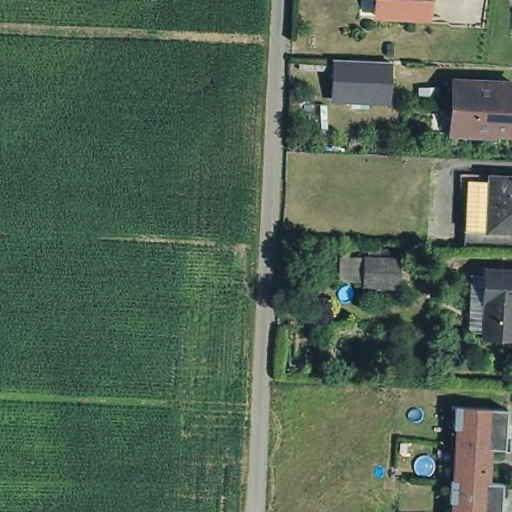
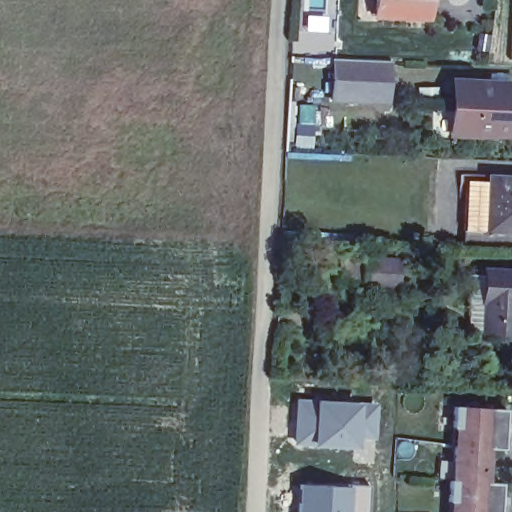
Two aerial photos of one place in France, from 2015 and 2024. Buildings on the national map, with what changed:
unchanged [(428,0),(427,20),(375,18),(375,0),(428,0)]
unchanged [(390,105),(331,102),(334,57),(391,60),(390,105)]
unchanged [(459,80),(512,87),(512,135),(512,138),(477,134),(477,136),(452,133),(459,80)]
unchanged [(491,177),(512,178),(512,234),(489,232),(490,184),(491,177)]
unchanged [(512,234),(512,249),(467,246),(471,182),(490,184),(489,232),(512,234)]
unchanged [(367,258),(400,259),(398,286),(366,284),(367,258)]
unchanged [(512,342),(482,340),(482,335),(467,335),(469,309),(471,277),(484,278),(484,271),(512,274),(512,342)]
new [(295,396),(375,401),(374,438),(357,436),(355,446),(294,443),(295,396)]
unchanged [(455,505),(449,505),(450,483),(453,483),(454,448),(457,448),(458,431),(452,430),(452,408),(505,410),(504,451),(490,451),(489,483),(502,484),(501,512),(455,512),(455,505)]
new [(299,482),(368,484),(367,512),(297,512),(299,482)]

